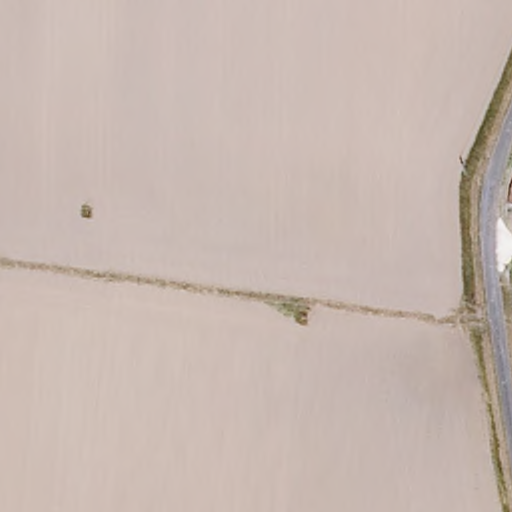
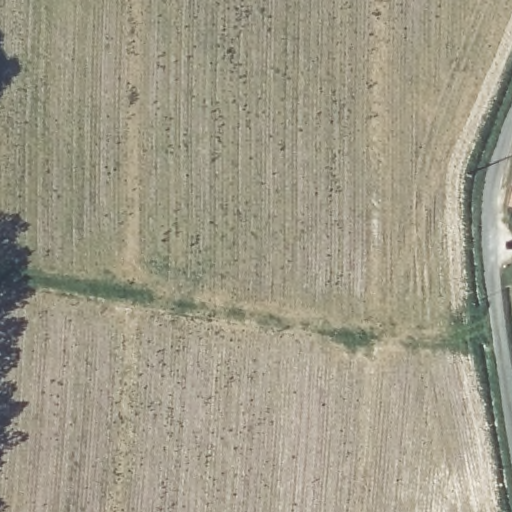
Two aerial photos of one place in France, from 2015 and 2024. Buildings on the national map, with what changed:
unchanged [(502,202),(512,178),(512,205),(502,202)]

